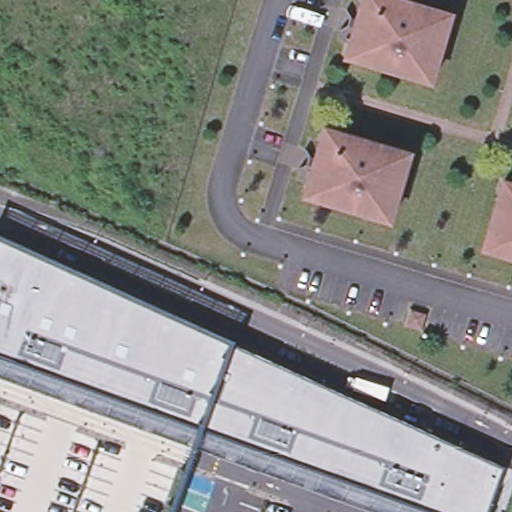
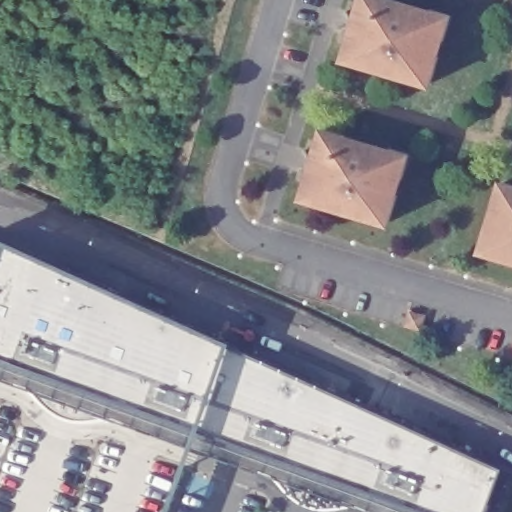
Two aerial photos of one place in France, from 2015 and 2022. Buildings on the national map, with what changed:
unchanged [(423,10),(423,8),(445,14),(437,40),(435,40),(430,54),(433,55),(425,81),(404,75),(405,73),(362,60),(362,62),(340,56),(348,30),(350,31),(355,16),(352,15),(357,0),(391,0),(423,10)]
unchanged [(340,134),(340,136),(382,149),(382,147),(405,153),(397,179),(394,179),(390,193),(392,194),(385,220),(362,214),(363,211),(321,199),(320,201),(299,195),(307,169),(310,170),(314,155),(312,154),(319,128),(340,134)]
unchanged [(512,189),(512,260),(505,258),(505,260),(482,254),(490,227),(493,228),(497,213),(495,212),(503,186),(512,189)]
unchanged [(488,512),(439,512),(0,355),(0,239),(501,467),(488,512)]

